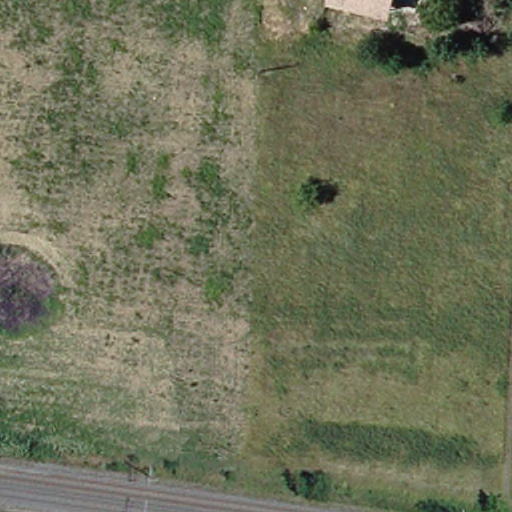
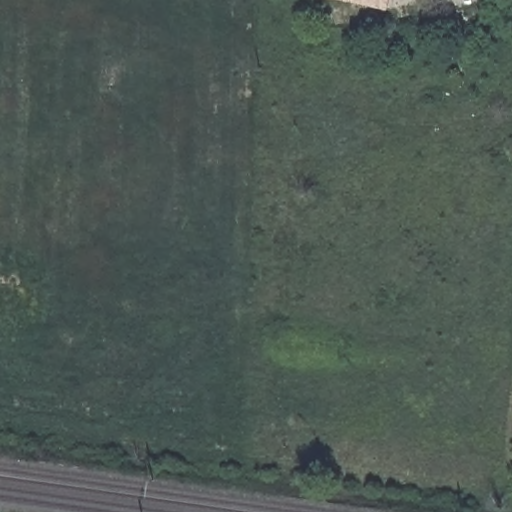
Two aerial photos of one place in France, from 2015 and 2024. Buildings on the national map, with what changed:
unchanged [(394,0),(394,1),(385,0),(394,0)]

